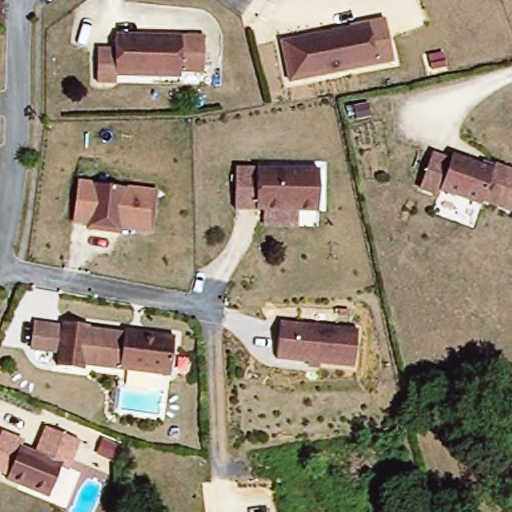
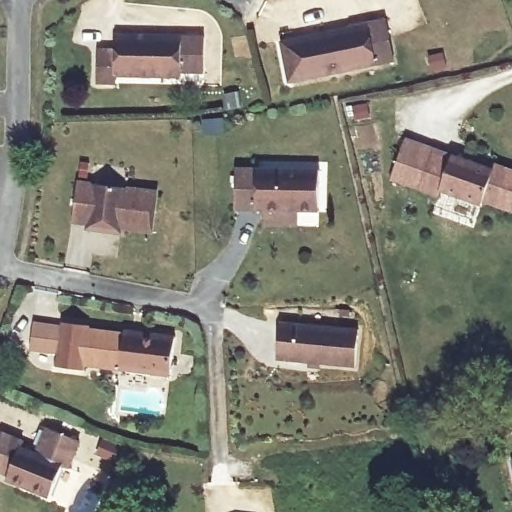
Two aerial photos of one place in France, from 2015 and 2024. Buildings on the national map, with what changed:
unchanged [(365,21),(384,17),(393,59),(288,81),(280,46),(314,39),(313,34),(320,33),(365,23),(365,21)]
unchanged [(161,79),(115,78),(115,85),(96,85),(96,52),(115,53),(115,37),(203,39),(202,74),(180,74),(180,79),(161,79)]
new [(389,180),(404,137),(452,154),(450,159),(432,152),(420,187),(419,191),(389,180)]
unchanged [(512,209),(483,199),(481,203),(441,188),(440,194),(420,187),(432,152),(450,159),(452,154),(494,169),(496,163),(512,169),(512,209)]
unchanged [(268,228),(269,213),(238,212),(240,170),(323,172),(322,214),(301,213),(301,229),(268,228)]
unchanged [(87,227),(88,222),(73,220),(78,180),(156,189),(151,229),(113,224),(113,230),(87,227)]
unchanged [(61,324),(87,328),(87,330),(122,334),(123,332),(174,338),(169,378),(82,368),(82,372),(55,369),(57,357),(46,355),(30,353),(33,326),(50,328),(60,329),(61,324)]
unchanged [(280,324),(358,332),(355,369),(276,362),(280,324)]
unchanged [(60,463),(48,494),(5,477),(10,468),(0,464),(0,432),(2,426),(24,434),(21,440),(36,447),(45,425),(78,439),(67,465),(60,463)]

